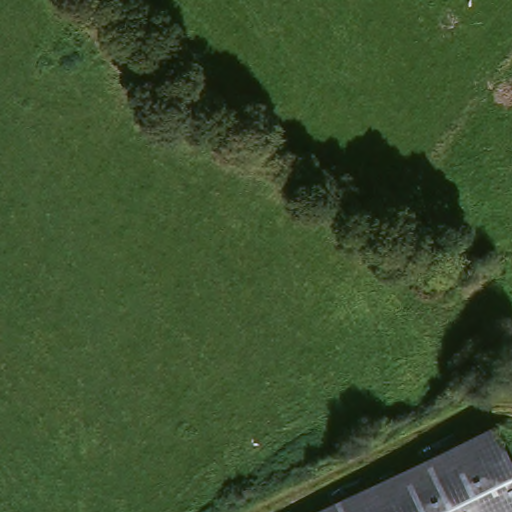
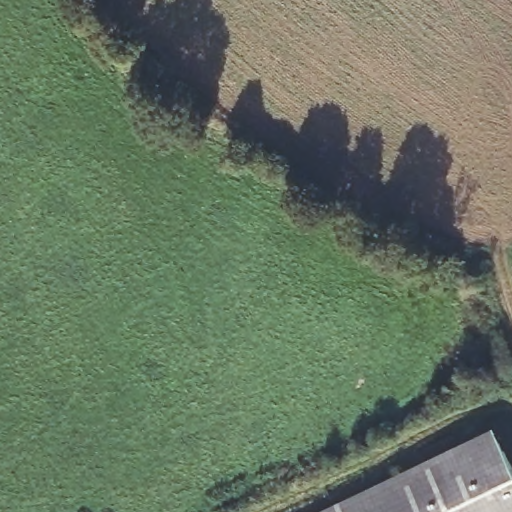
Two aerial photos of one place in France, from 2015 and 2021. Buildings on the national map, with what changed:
unchanged [(512,477),(512,512),(326,512),(489,431),(512,477)]

